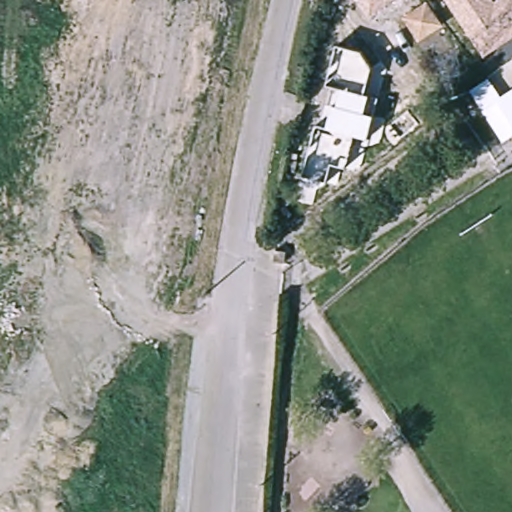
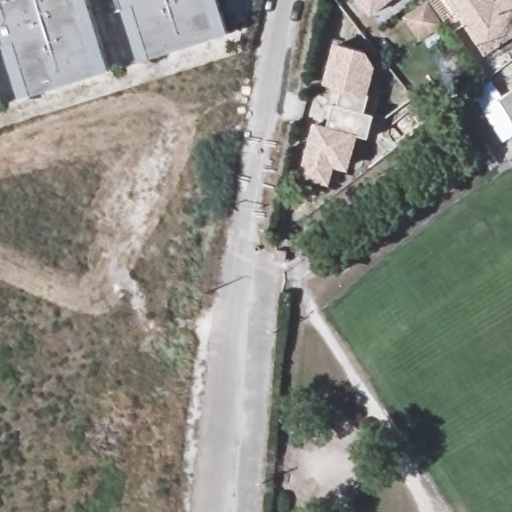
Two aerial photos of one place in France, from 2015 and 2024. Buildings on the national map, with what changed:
new [(4,45),(0,47),(0,0),(86,0),(109,72),(21,99),(4,45)]
new [(140,60),(121,0),(218,0),(229,34),(140,60)]
unchanged [(371,18),(358,0),(394,0),(371,18)]
unchanged [(495,0),(496,0),(512,0),(512,38),(486,56),(447,0),(495,0)]
unchanged [(427,7),(439,26),(420,39),(408,20),(427,7)]
new [(379,97),(376,116),(369,139),(356,136),(349,170),(334,167),(330,184),(301,176),(314,124),(324,126),(334,87),(324,84),(334,44),(365,52),(374,69),(366,95),(379,97)]
unchanged [(504,141),(472,91),(491,79),(502,97),(499,99),(512,121),(512,137),(504,141)]
unchanged [(512,91),(512,121),(499,99),(512,91)]

